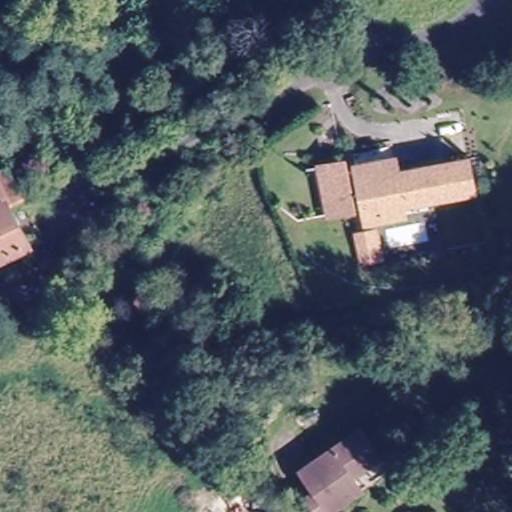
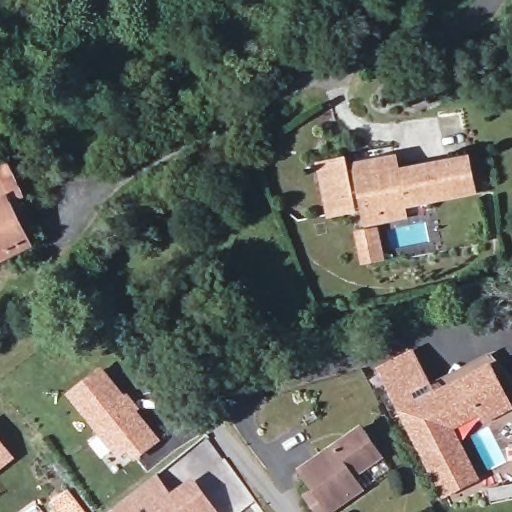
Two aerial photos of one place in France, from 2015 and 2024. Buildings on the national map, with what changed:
unchanged [(370,224),(366,210),(332,218),(320,169),(343,163),(346,174),(357,171),(356,169),(395,160),(398,173),(468,157),(476,190),(382,211),(385,221),(370,224)]
unchanged [(5,201),(26,245),(0,258),(0,166),(3,165),(18,195),(5,201)]
new [(397,411),(376,368),(415,349),(435,391),(491,363),(512,403),(512,411),(482,426),(478,418),(455,430),(480,478),(441,499),(397,411)]
new [(66,395),(101,367),(160,442),(132,462),(124,451),(116,457),(66,395)]
unchanged [(301,466),(362,424),(382,452),(392,467),(365,486),(333,508),(327,512),(322,512),(308,493),(317,487),(301,466)]
new [(0,471),(0,440),(15,459),(0,471)]
new [(136,488),(155,473),(171,494),(192,477),(216,507),(210,512),(108,512),(107,512),(136,488)]

